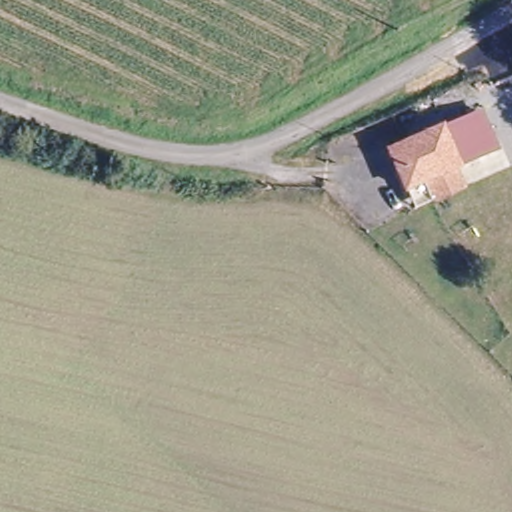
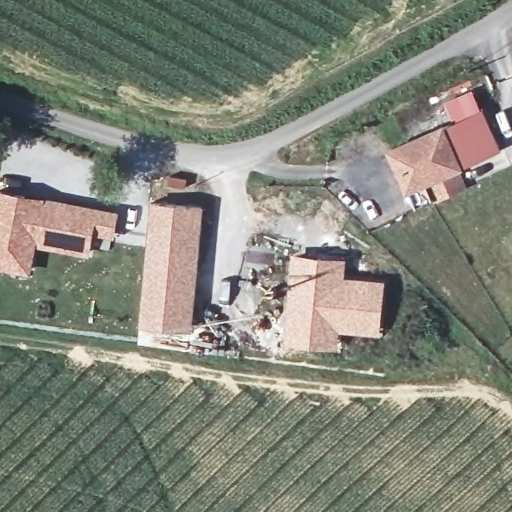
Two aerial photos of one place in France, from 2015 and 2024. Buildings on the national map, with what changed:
unchanged [(425,196),(417,175),(401,181),(384,139),(475,99),(492,142),(450,161),(459,180),(425,196)]
new [(94,236),(90,256),(36,246),(30,273),(0,268),(0,189),(118,210),(115,238),(94,236)]
new [(140,325),(152,200),(204,206),(192,329),(140,325)]
new [(291,252),(348,257),(346,274),(387,279),(382,335),(341,331),(339,346),(281,339),(291,252)]

